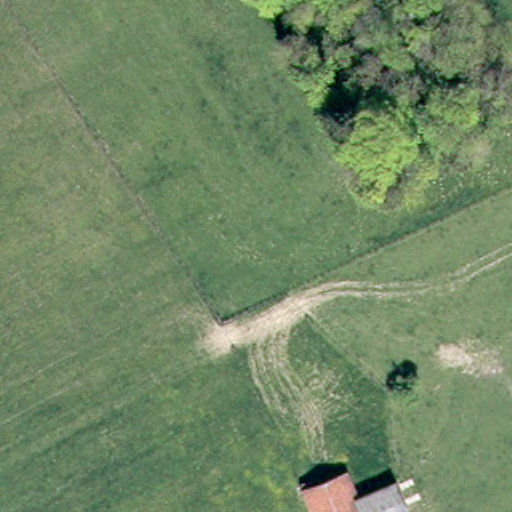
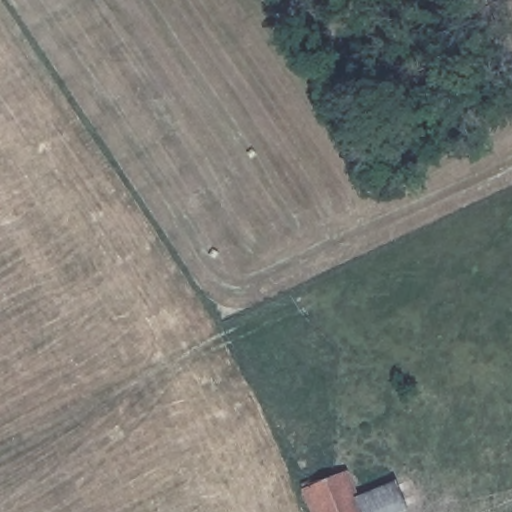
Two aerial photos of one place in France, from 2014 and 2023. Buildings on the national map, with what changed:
unchanged [(397,487),(407,512),(311,512),(302,490),(310,487),(314,492),(346,480),(358,503),(397,487)]

